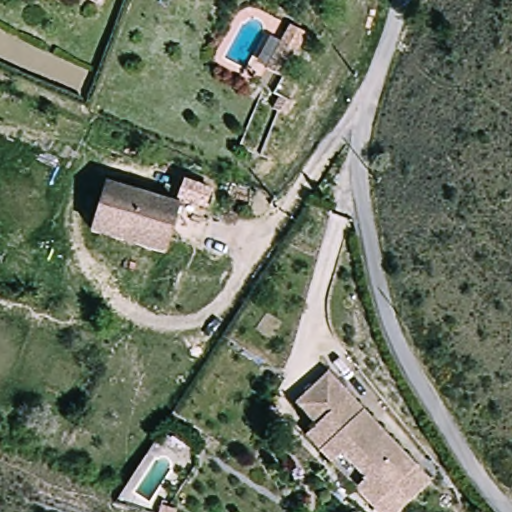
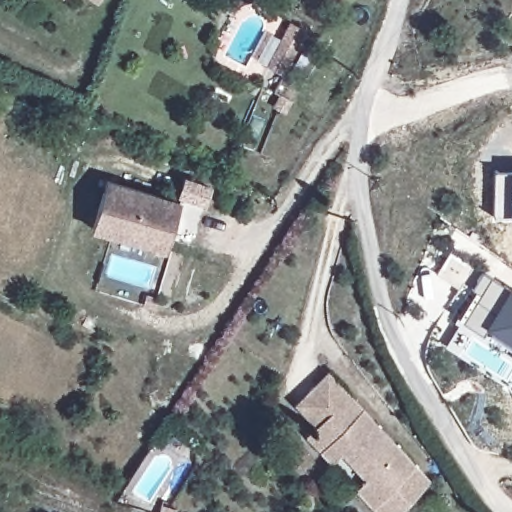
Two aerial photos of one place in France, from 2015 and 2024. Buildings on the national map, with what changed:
unchanged [(52,0),(80,0),(74,10),(52,0)]
unchanged [(81,0),(107,0),(103,10),(81,0)]
unchanged [(338,0),(336,4),(330,0),(338,0)]
unchanged [(296,47),(278,71),(263,61),(281,37),(296,47)]
new [(494,175),(512,176),(512,222),(494,221),(494,175)]
unchanged [(114,177),(183,206),(163,254),(94,225),(114,177)]
new [(478,291),(474,288),(486,273),(512,292),(512,389),(444,337),(478,291)]
unchanged [(319,422),(300,401),(332,372),(352,393),(319,422)]
unchanged [(348,450),(337,457),(311,430),(319,422),(352,393),(419,466),(378,501),(361,483),(370,475),(360,463),(348,450)]
unchanged [(171,512),(168,512),(157,508),(162,498),(174,502),(171,512)]

